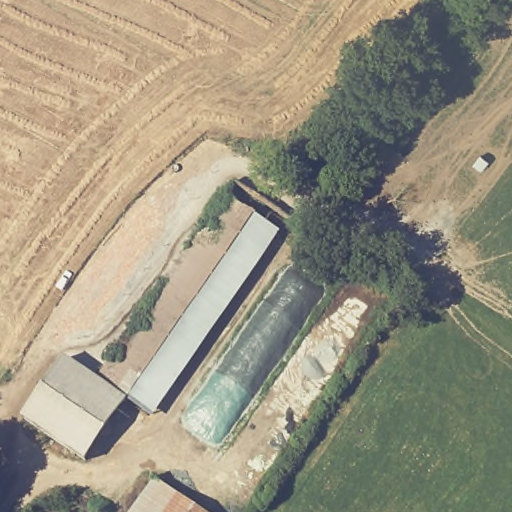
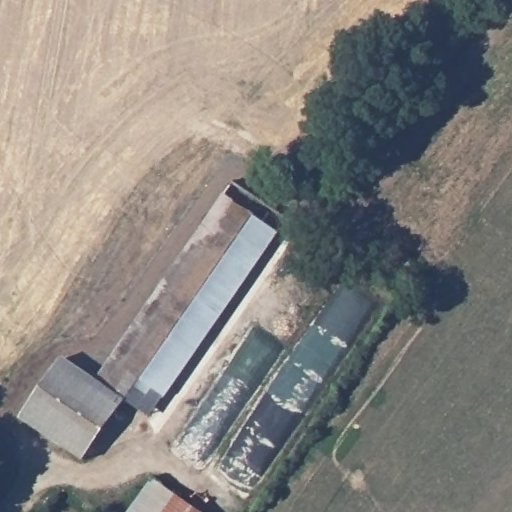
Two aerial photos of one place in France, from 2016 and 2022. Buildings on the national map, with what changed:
unchanged [(286,233),(243,297),(157,419),(130,400),(100,379),(228,194),(286,233)]
unchanged [(28,417),(70,357),(100,379),(130,400),(89,458),(60,439),(28,417)]
unchanged [(128,512),(153,477),(203,512),(128,512)]

